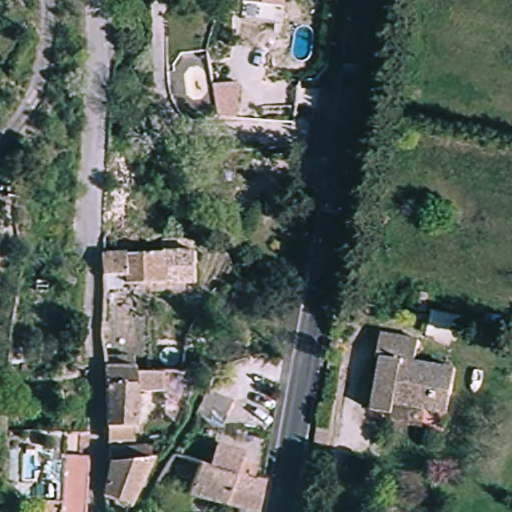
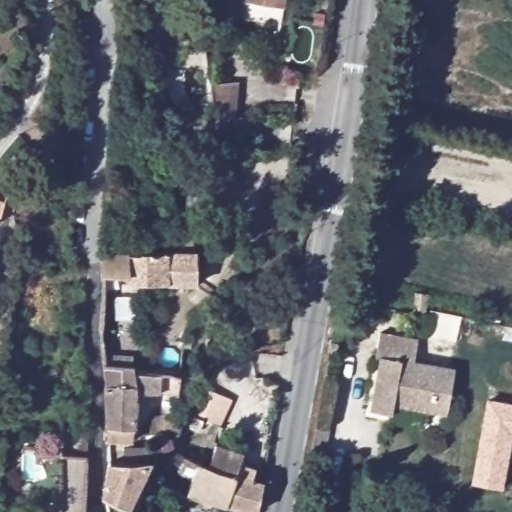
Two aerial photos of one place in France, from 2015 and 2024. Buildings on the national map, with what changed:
unchanged [(239,0),(280,0),(279,7),(239,0)]
new [(239,82),(234,117),(217,116),(213,85),(239,82)]
unchanged [(123,288),(106,288),(106,274),(102,274),(100,253),(104,253),(163,252),(163,241),(193,240),(193,252),(197,251),(197,283),(128,284),(123,284),(123,288)]
unchanged [(417,292),(429,294),(427,312),(415,310),(417,292)]
unchanged [(463,316),(458,339),(429,333),(433,317),(434,310),(463,316)]
unchanged [(376,356),(381,333),(418,339),(414,362),(455,369),(447,413),(394,404),(392,414),(371,410),(381,357),(376,356)]
unchanged [(184,338),(191,339),(190,347),(183,346),(184,338)]
unchanged [(339,343),(337,351),(330,350),(331,342),(339,343)]
unchanged [(162,371),(181,372),(179,393),(162,390),(137,391),(137,398),(137,404),(137,413),(136,419),(132,442),(108,442),(109,427),(107,427),(106,383),(104,367),(109,367),(107,355),(133,354),(135,368),(135,370),(162,371)]
unchanged [(232,400),(220,426),(204,419),(199,431),(188,426),(193,416),(206,389),(232,400)]
new [(504,489),(472,483),(486,398),(512,402),(512,441),(504,489)]
unchanged [(327,427),(321,461),(310,459),(317,425),(327,427)]
unchanged [(216,444),(244,453),(240,463),(255,468),(252,479),(264,483),(258,512),(256,512),(227,504),(236,475),(212,467),(209,466),(216,444)]
unchanged [(88,455),(88,471),(86,498),(85,512),(59,512),(59,509),(61,479),(63,454),(88,455)]
unchanged [(207,465),(209,466),(212,467),(236,475),(227,504),(190,494),(201,462),(207,465)]
unchanged [(99,500),(105,469),(105,467),(146,463),(133,489),(137,491),(126,512),(101,512),(99,500)]

